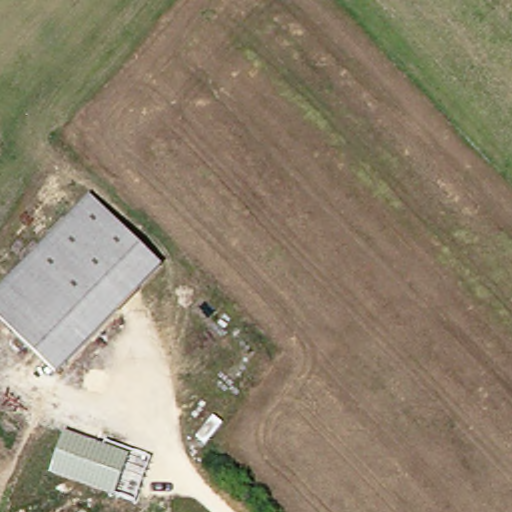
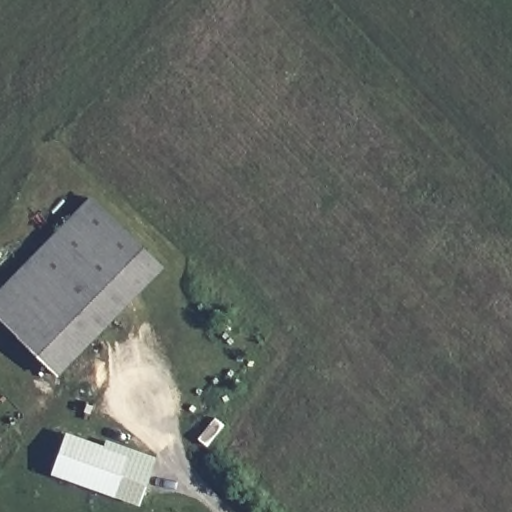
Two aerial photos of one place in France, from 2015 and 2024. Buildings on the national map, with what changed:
unchanged [(56,374),(0,321),(0,288),(84,196),(159,264),(56,374)]
unchanged [(122,499),(103,493),(40,471),(53,433),(117,455),(118,450),(137,456),(122,499)]

